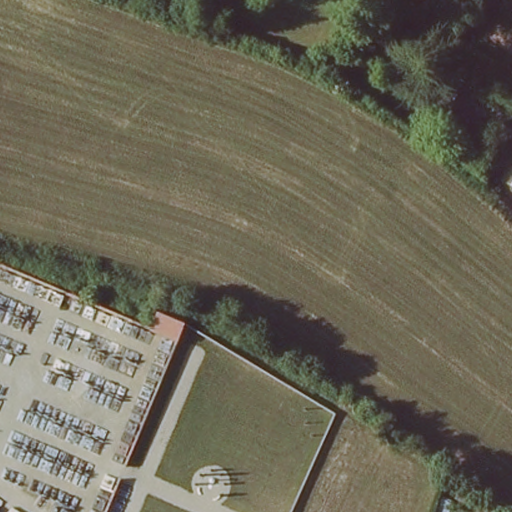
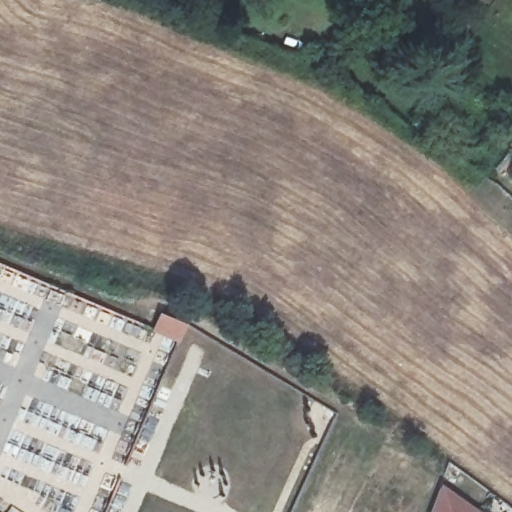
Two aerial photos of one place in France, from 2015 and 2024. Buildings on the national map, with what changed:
new [(429,512),(439,485),(479,512),(429,512)]

